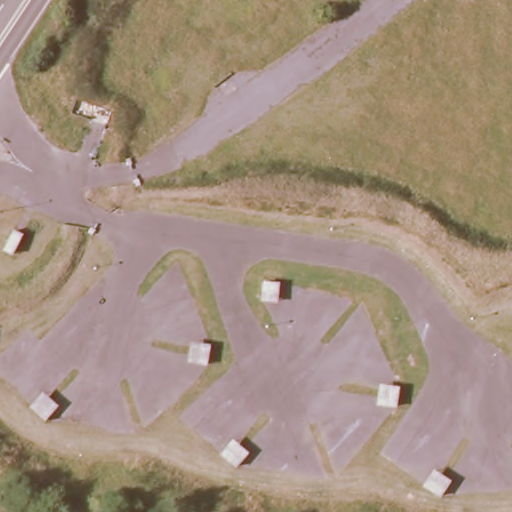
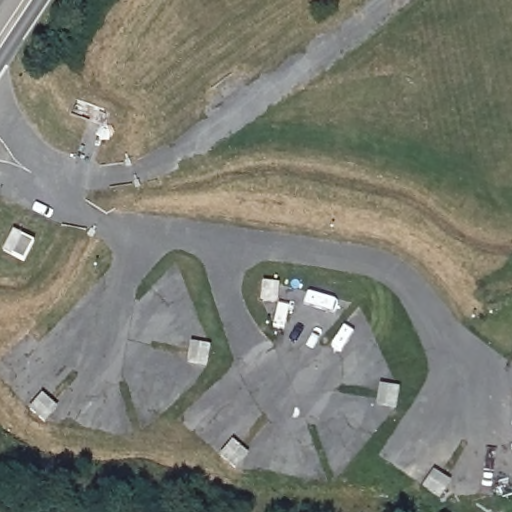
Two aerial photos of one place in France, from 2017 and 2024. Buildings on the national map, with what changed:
unchanged [(23,232),(13,251),(5,247),(15,227),(23,232)]
unchanged [(262,297),(263,288),(265,278),(280,280),(278,290),(277,299),(262,297)]
unchanged [(207,361),(198,359),(190,358),(192,339),(202,341),(210,343),(207,361)]
unchanged [(396,403),(387,402),(378,401),(380,382),(390,383),(399,385),(396,403)]
unchanged [(32,404),(38,397),(43,391),(58,403),(52,409),(46,416),(32,404)]
unchanged [(222,452),(227,444),(233,438),(248,450),(242,456),(236,463),(222,452)]
unchanged [(424,483),(429,475),(434,467),(450,478),(445,485),(440,493),(424,483)]

